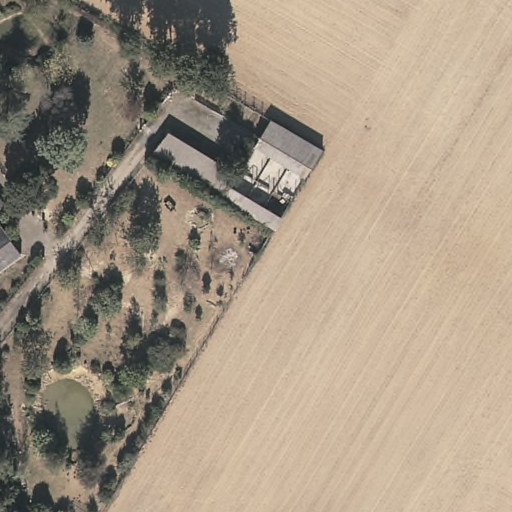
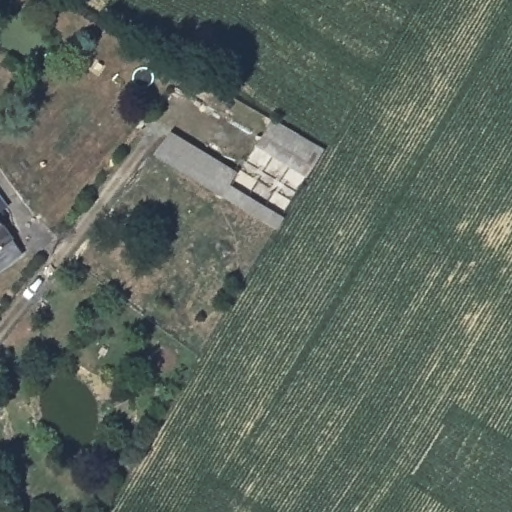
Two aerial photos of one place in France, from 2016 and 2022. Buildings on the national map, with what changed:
unchanged [(326,148),(302,178),(254,147),(273,118),(326,148)]
unchanged [(222,160),(227,183),(284,218),(276,229),(150,155),(169,129),(222,160)]
unchanged [(4,204),(0,206),(0,197),(4,204)]
unchanged [(20,251),(0,264),(0,221),(20,251)]

